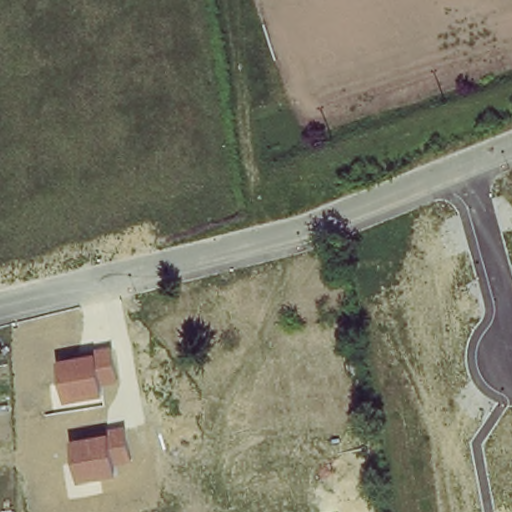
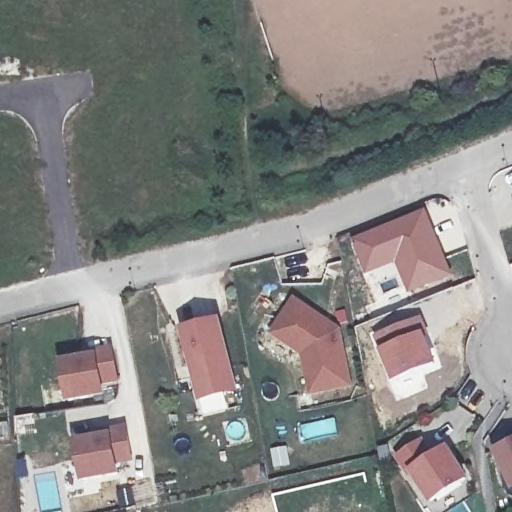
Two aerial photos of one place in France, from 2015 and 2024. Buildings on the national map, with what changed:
new [(425,206),(453,275),(407,293),(394,264),(363,275),(349,237),(425,206)]
new [(294,296),(343,327),(353,387),(309,395),(301,355),(270,333),(294,296)]
new [(215,313),(232,383),(197,391),(180,322),(215,313)]
new [(420,313),(439,366),(391,384),(372,333),(420,313)]
unchanged [(61,361),(79,357),(78,352),(113,347),(119,382),(105,386),(106,396),(69,403),(61,361)]
unchanged [(93,437),(92,432),(126,425),(133,461),(118,465),(119,475),(83,482),(74,440),(93,437)]
unchanged [(420,442),(431,458),(445,449),(463,478),(429,501),(411,472),(407,475),(397,457),(420,442)]
new [(511,486),(494,451),(512,442),(512,486),(511,486)]

